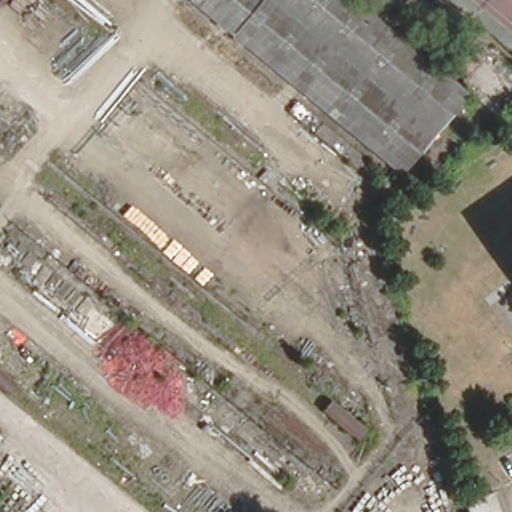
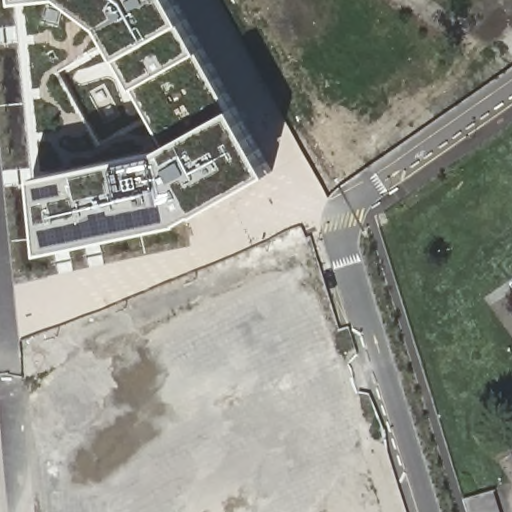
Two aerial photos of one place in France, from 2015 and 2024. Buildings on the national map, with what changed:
new [(25,0),(177,0),(272,170),(183,219),(45,249),(38,174),(25,0)]
demolished [(400,173),(190,0),(349,0),(463,95),(400,173)]
demolished [(512,74),(512,118),(511,119),(466,84),(488,56),(512,74)]
unchanged [(464,503),(494,493),(500,512),(467,512),(464,503)]

